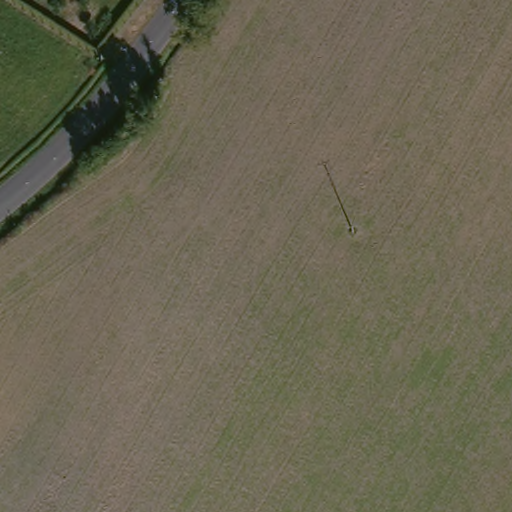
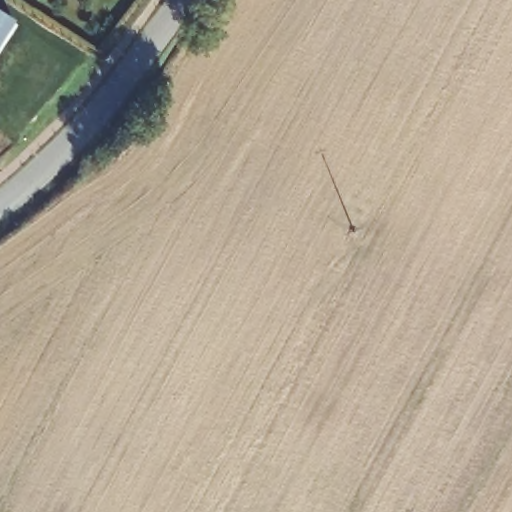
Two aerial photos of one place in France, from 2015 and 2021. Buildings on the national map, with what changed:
new [(16,20),(0,46),(0,11),(16,20)]

